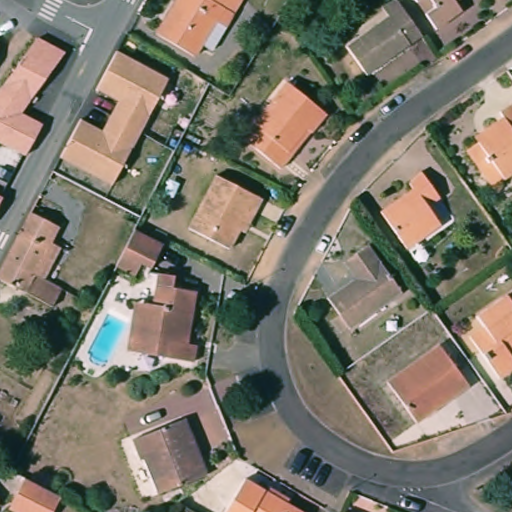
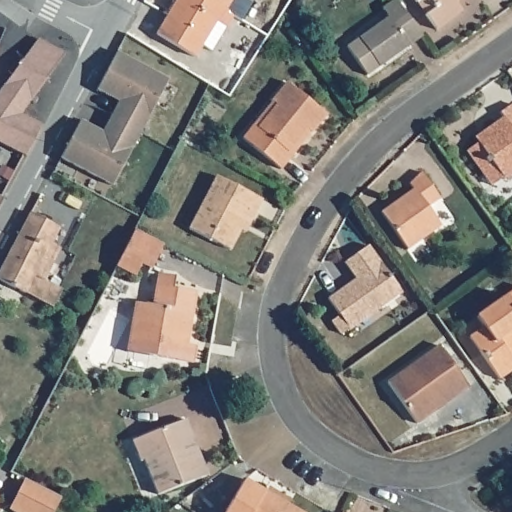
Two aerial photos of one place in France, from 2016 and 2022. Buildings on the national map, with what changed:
unchanged [(239,0),(225,31),(214,25),(195,65),(154,40),(178,0),(239,0)]
unchanged [(398,0),(400,0),(425,36),(363,79),(342,50),(393,17),(387,7),(398,0)]
unchanged [(462,0),(457,4),(466,17),(439,35),(428,18),(416,2),(415,0),(462,0)]
unchanged [(25,161),(0,147),(0,89),(34,41),(63,53),(19,114),(44,129),(25,161)]
unchanged [(114,180),(62,156),(81,117),(103,126),(119,96),(99,87),(116,49),(169,76),(114,180)]
unchanged [(264,122),(279,106),(274,102),(289,83),(328,117),(284,165),(248,134),(259,119),(264,122)]
unchanged [(477,169),(466,154),(493,136),(489,128),(504,118),(501,113),(512,106),(512,177),(504,182),(502,179),(489,187),(477,169)]
unchanged [(235,231),(225,251),(189,232),(217,177),(262,200),(252,220),(244,235),(235,231)]
unchanged [(414,192),(411,186),(424,177),(441,201),(429,209),(442,228),(407,253),(381,215),(414,192)]
unchanged [(0,207),(0,198),(4,200),(0,207)]
unchanged [(48,258),(58,263),(48,282),(64,292),(54,310),(0,281),(0,278),(35,214),(61,229),(48,258)]
unchanged [(159,244),(147,268),(134,263),(129,274),(109,263),(130,230),(159,244)]
unchanged [(403,293),(351,329),(329,298),(381,262),(403,293)]
unchanged [(129,353),(136,302),(156,305),(159,285),(199,291),(194,342),(204,343),(202,363),(169,359),(138,355),(129,353)]
unchanged [(502,383),(472,337),(486,328),(480,318),(512,297),(512,376),(502,383)]
unchanged [(442,346),(469,387),(419,421),(389,380),(442,346)]
unchanged [(192,421),(209,478),(158,493),(147,457),(141,458),(134,436),(192,421)]
unchanged [(59,495),(51,512),(14,512),(8,509),(24,477),(59,495)]
unchanged [(295,512),(227,512),(244,482),(285,507),(295,512)]

